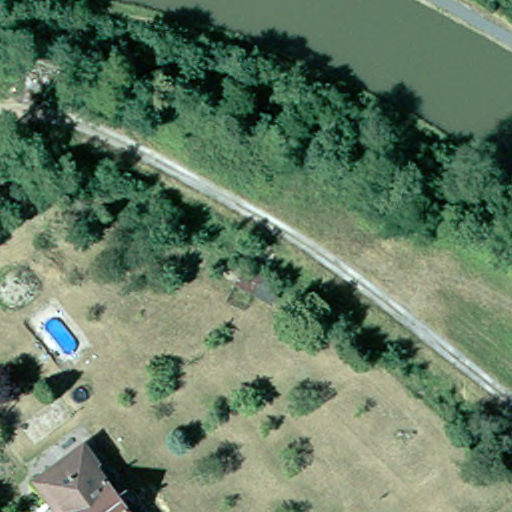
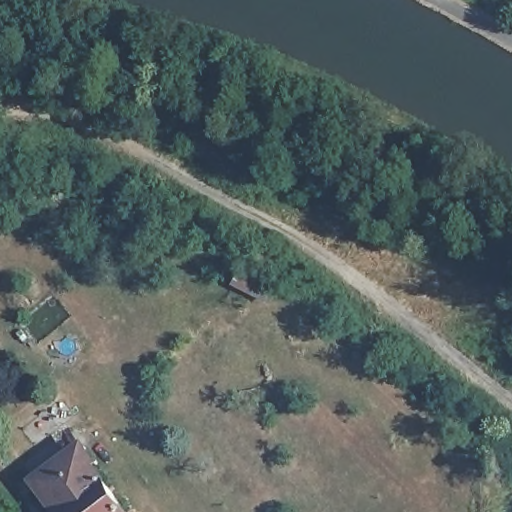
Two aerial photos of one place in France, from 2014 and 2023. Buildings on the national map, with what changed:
unchanged [(44,97),(11,86),(39,62),(72,74),(44,97)]
unchanged [(59,508),(50,495),(73,479),(65,467),(84,454),(125,512),(54,512),(59,508)]

